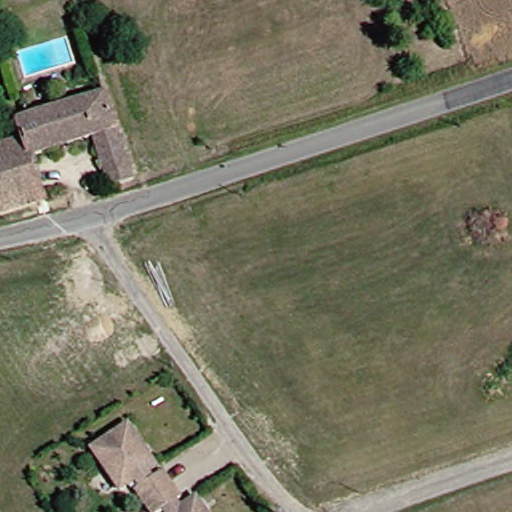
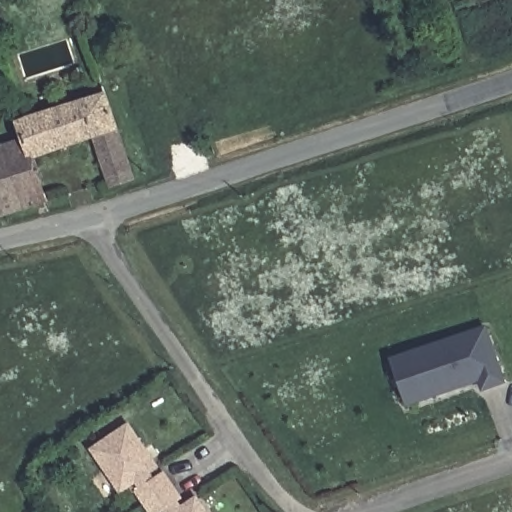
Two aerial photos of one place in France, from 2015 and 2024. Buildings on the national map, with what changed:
unchanged [(9,131),(8,126),(101,99),(128,180),(110,187),(96,146),(38,165),(32,148),(7,155),(25,211),(0,216),(0,134),(9,131)]
unchanged [(50,207),(25,211),(7,155),(32,148),(38,165),(50,207)]
new [(392,356),(408,351),(487,328),(504,385),(481,391),(479,381),(422,398),(406,403),(392,356)]
unchanged [(134,484),(123,493),(94,450),(130,426),(154,464),(151,468),(158,476),(167,472),(184,495),(180,502),(184,509),(197,500),(206,512),(151,512),(134,484)]

